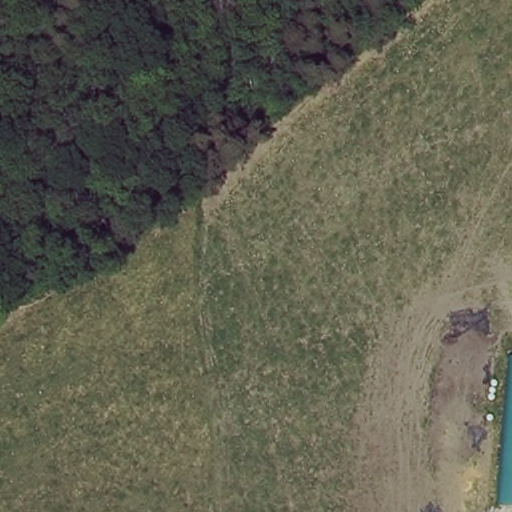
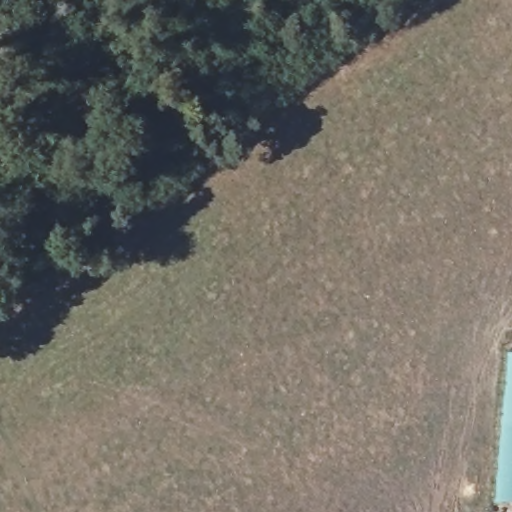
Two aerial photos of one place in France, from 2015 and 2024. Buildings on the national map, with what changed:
unchanged [(502,503),(512,363),(512,504),(502,503)]

